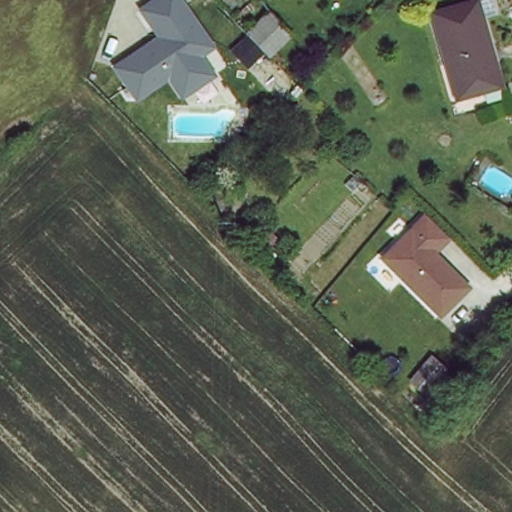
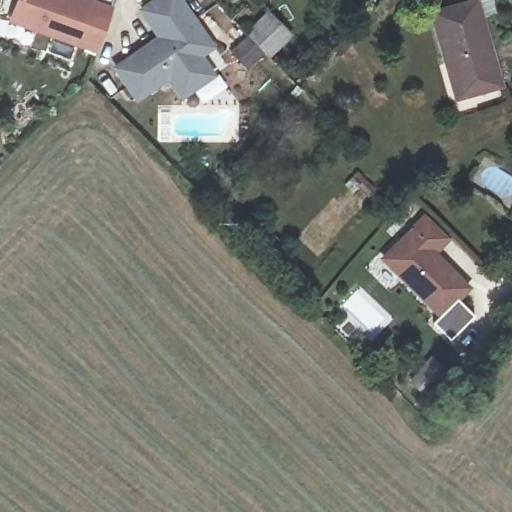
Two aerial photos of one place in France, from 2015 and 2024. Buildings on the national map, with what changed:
new [(100,0),(113,4),(96,52),(10,21),(17,0),(100,0)]
unchanged [(137,9),(149,0),(183,0),(216,48),(206,56),(219,75),(182,104),(166,83),(136,104),(109,68),(155,34),(137,9)]
unchanged [(465,0),(480,0),(503,83),(456,95),(431,9),(465,0)]
unchanged [(270,15),(289,33),(267,53),(249,35),(270,15)]
unchanged [(452,240),(439,255),(471,288),(440,322),(380,259),(423,212),(452,240)]
unchanged [(416,387),(434,366),(446,376),(427,397),(418,389),(416,387)]

